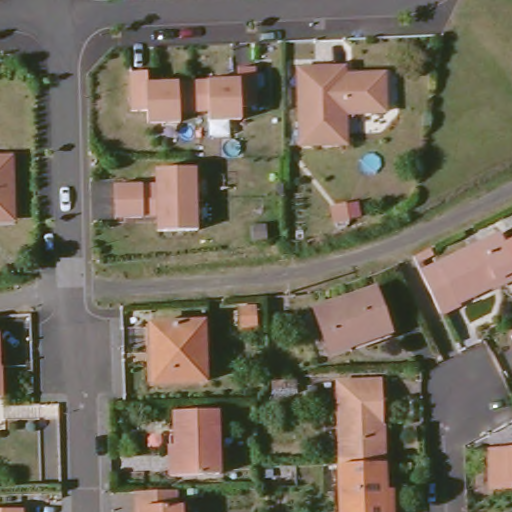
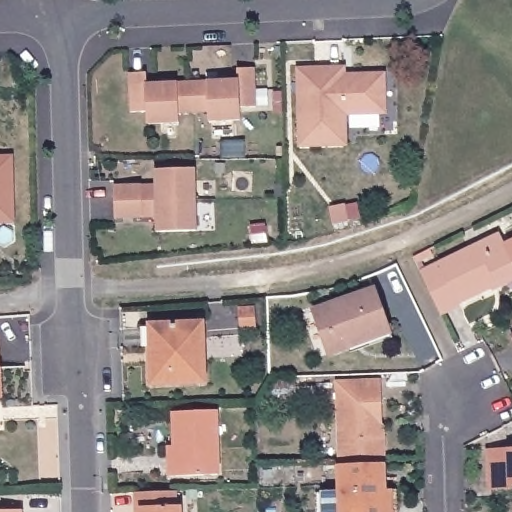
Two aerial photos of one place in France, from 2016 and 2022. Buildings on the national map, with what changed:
unchanged [(343,64),(343,78),(352,78),(357,72),(383,71),(384,109),(344,110),(345,141),(299,143),(297,66),(343,64)]
unchanged [(255,109),(241,109),(241,122),(209,123),(209,113),(183,114),(179,114),(180,124),(148,125),(148,112),(132,113),(131,74),(147,74),(149,84),(183,84),(239,84),(237,73),(255,70),(255,109)]
unchanged [(11,159),(12,209),(0,222),(0,160),(11,159)]
unchanged [(141,187),(141,194),(155,193),(155,172),(185,172),(195,171),(196,233),(186,234),(156,234),(156,213),(142,214),(141,220),(114,220),(114,188),(141,187)]
unchanged [(319,213),(334,209),(337,224),(322,228),(319,213)]
unchanged [(512,246),(512,279),(492,288),(459,302),(460,304),(440,313),(421,273),(501,238),(506,249),(512,246)]
unchanged [(362,343),(326,353),(313,310),(373,292),(385,330),(360,338),(362,343)]
unchanged [(512,328),(512,338),(508,329),(512,328)]
unchanged [(149,384),(149,329),(199,329),(198,385),(149,384)]
unchanged [(375,424),(377,464),(338,466),(337,386),(379,384),(380,424),(375,424)]
unchanged [(179,478),(178,414),(218,414),(219,478),(179,478)]
unchanged [(512,486),(490,486),(490,447),(512,446),(512,476),(512,477),(512,486)]
unchanged [(394,512),(338,512),(338,466),(377,464),(379,494),(394,493),(394,512)]
unchanged [(140,503),(175,502),(175,512),(140,512),(140,503)]

